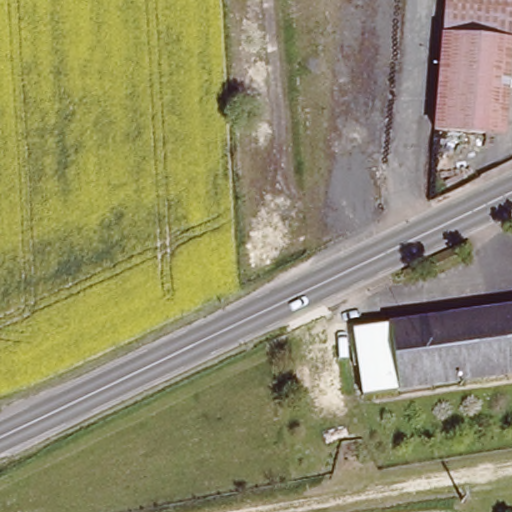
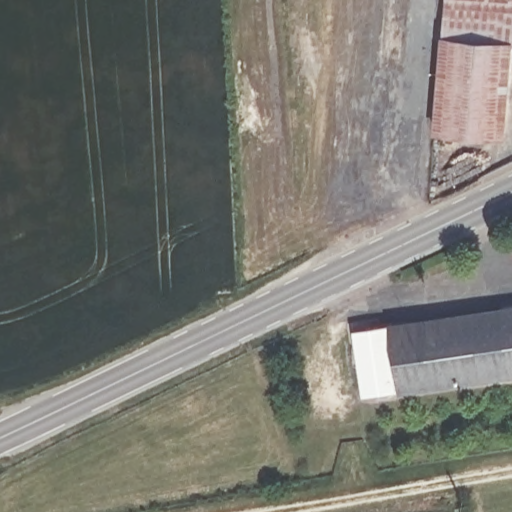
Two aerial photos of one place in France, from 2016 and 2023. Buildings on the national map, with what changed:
unchanged [(435,114),(446,0),(512,0),(512,59),(506,120),(435,114)]
unchanged [(512,305),(512,374),(505,375),(500,306),(512,305)]
unchanged [(398,388),(393,320),(500,306),(505,375),(398,388)]
unchanged [(387,322),(393,389),(372,391),(357,393),(352,325),(364,325),(387,322)]

